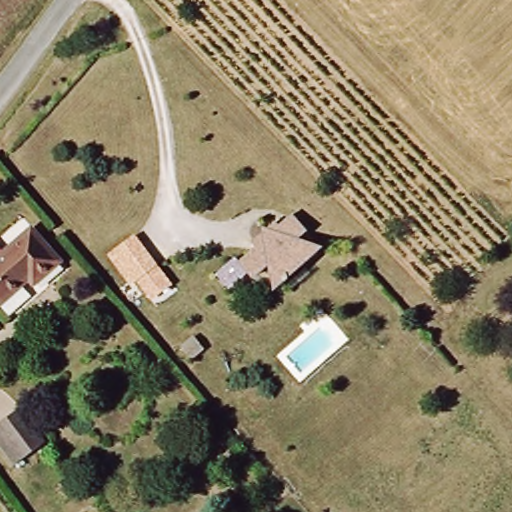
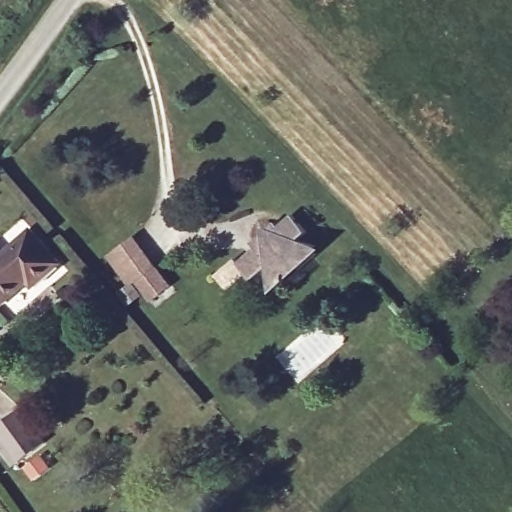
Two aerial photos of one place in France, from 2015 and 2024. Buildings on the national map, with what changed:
unchanged [(326,250),(277,295),(271,267),(256,282),(252,277),(234,294),(219,278),(239,259),(243,263),(256,249),(254,244),(266,234),(266,229),(269,230),(276,223),(281,227),(294,215),(312,233),(303,242),(326,250)]
unchanged [(171,284),(151,300),(138,282),(130,288),(106,256),(133,235),(171,284)]
unchanged [(2,312),(0,309),(0,266),(33,236),(62,268),(40,288),(35,282),(2,312)]
unchanged [(43,448),(20,465),(0,439),(0,422),(15,411),(43,448)]

